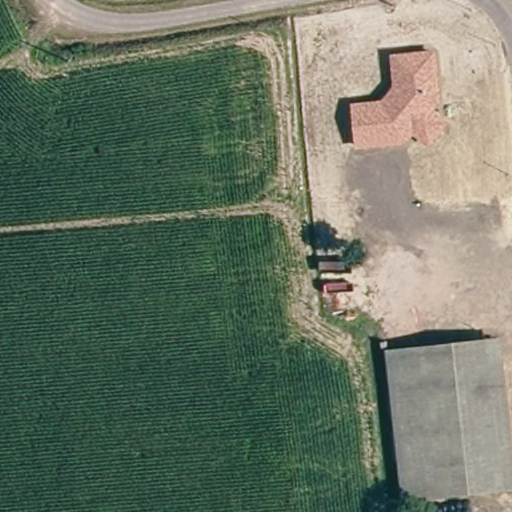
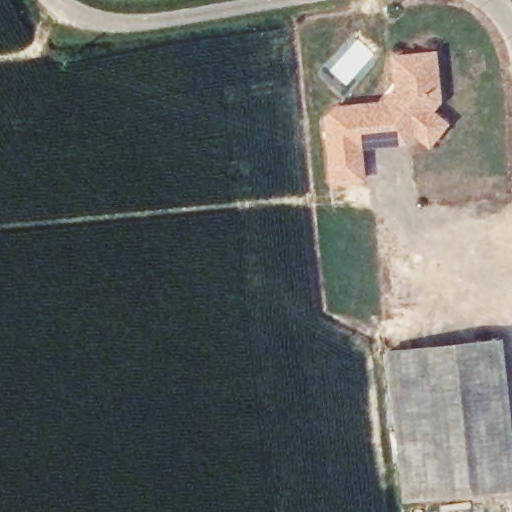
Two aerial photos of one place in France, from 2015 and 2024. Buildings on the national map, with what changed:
unchanged [(399,143),(364,146),(360,106),(390,104),(403,88),(400,57),(440,53),(445,100),(436,111),(452,123),(435,143),(420,130),(410,142),(399,143)]
new [(364,146),(366,183),(329,186),(323,121),(334,108),(360,106),(364,146)]
unchanged [(510,490),(409,499),(396,349),(497,340),(510,490)]

